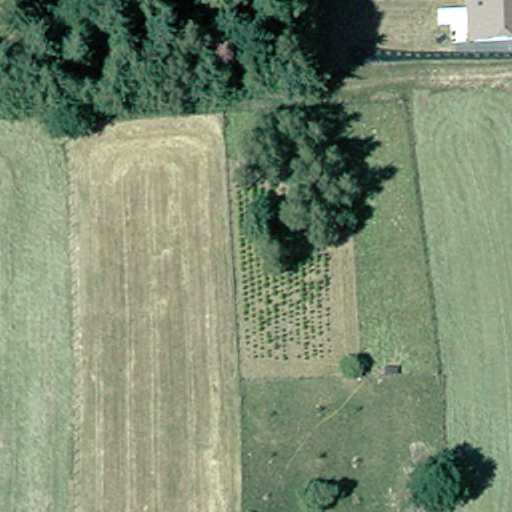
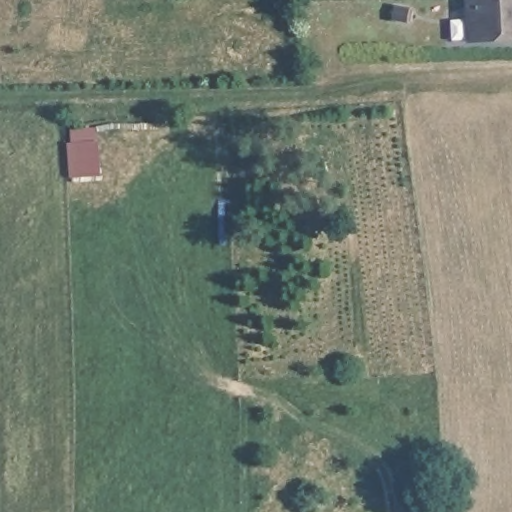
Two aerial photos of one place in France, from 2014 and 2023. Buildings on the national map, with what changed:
unchanged [(465,2),(472,2),(471,0),(512,0),(512,41),(468,43),(465,2)]
new [(97,141),(101,141),(102,177),(70,177),(68,142),(72,142),(72,127),(97,126),(97,141)]

